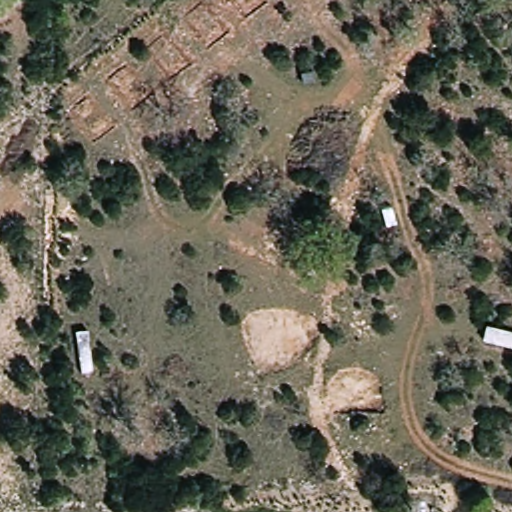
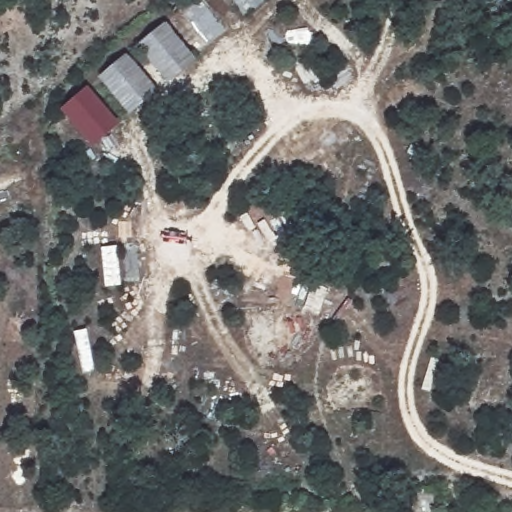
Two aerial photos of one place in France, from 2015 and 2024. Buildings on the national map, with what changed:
new [(197,60),(168,84),(138,46),(166,22),(197,60)]
new [(159,91),(131,115),(99,78),(128,54),(159,91)]
new [(121,124),(94,148),(61,110),(89,86),(121,124)]

